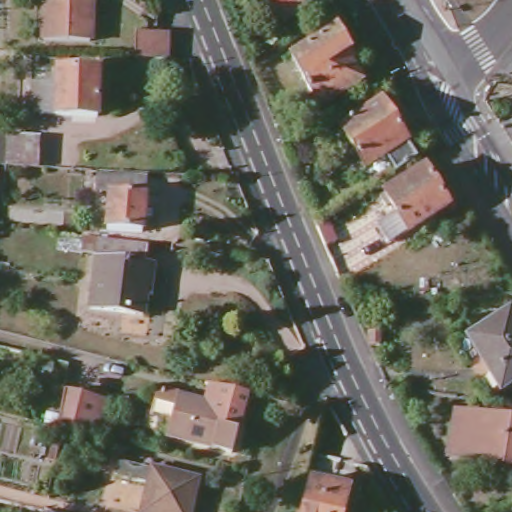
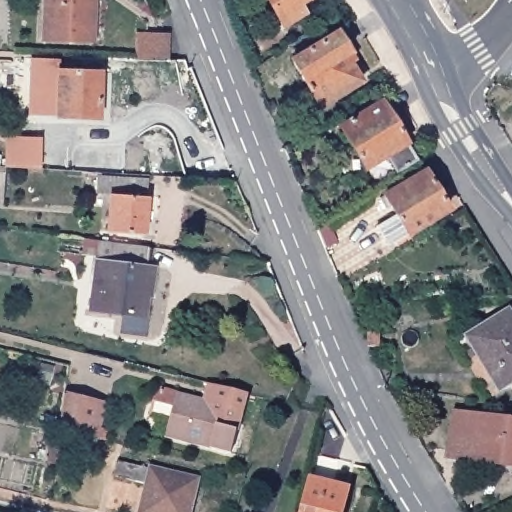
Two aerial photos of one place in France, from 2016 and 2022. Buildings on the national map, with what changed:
unchanged [(92,17),(97,17),(97,37),(92,37),(92,42),(45,41),(46,0),(93,0),(92,17)]
unchanged [(298,4),(304,14),(283,26),(267,0),(305,0),(298,4)]
unchanged [(353,50),(347,54),(362,80),(320,105),(292,59),(340,30),(353,50)]
unchanged [(170,33),(170,60),(137,60),(139,32),(170,33)]
unchanged [(105,72),(104,116),(47,115),(49,85),(65,85),(65,71),(105,72)]
unchanged [(404,146),(402,147),(412,164),(395,175),(384,158),(362,171),(336,130),(377,105),(404,146)]
unchanged [(21,136),(35,136),(34,168),(3,166),(5,135),(21,136)]
unchanged [(445,214),(404,237),(381,200),(422,175),(445,214)]
unchanged [(146,180),(145,197),(143,234),(108,228),(111,194),(95,191),(97,176),(146,180)]
unchanged [(146,245),(145,264),(152,265),(145,316),(92,307),(100,240),(146,245)]
unchanged [(463,338),(512,308),(512,382),(497,392),(463,338)]
unchanged [(382,335),(381,347),(370,346),(370,333),(382,335)]
unchanged [(214,385),(252,395),(247,413),(236,455),(171,438),(156,418),(162,391),(182,396),(210,403),(214,385)]
unchanged [(101,399),(99,413),(105,415),(100,439),(75,432),(60,429),(66,391),(101,399)]
unchanged [(512,469),(470,463),(470,456),(451,453),(455,415),(512,423),(512,469)]
unchanged [(192,512),(146,512),(153,485),(117,477),(121,462),(200,480),(192,512)]
unchanged [(350,486),(345,512),(306,512),(314,478),(350,486)]

